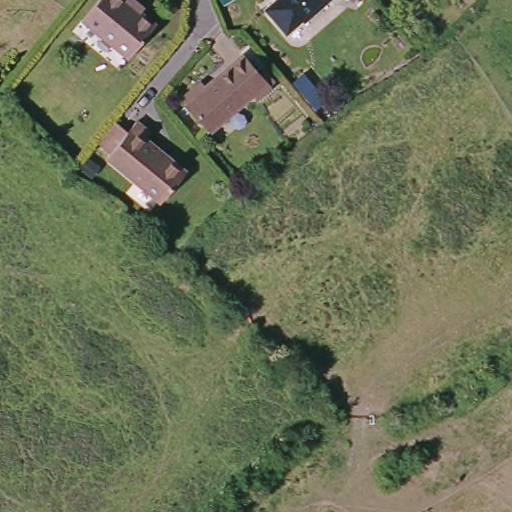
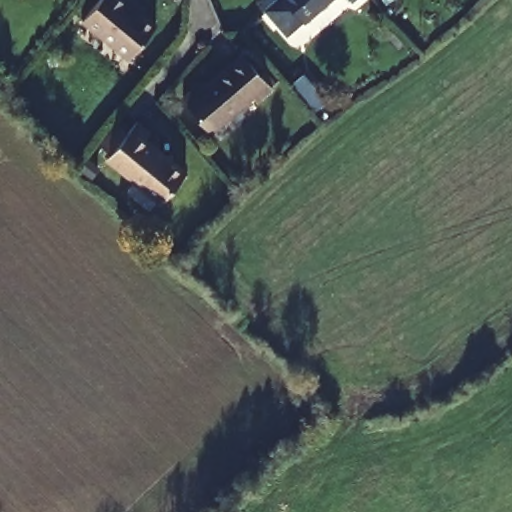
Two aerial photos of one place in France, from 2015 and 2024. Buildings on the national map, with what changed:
unchanged [(128,0),(157,24),(129,57),(82,19),(98,0),(128,0)]
unchanged [(293,24),(278,36),(257,11),(270,0),(323,0),(295,25),(293,24)]
unchanged [(183,98),(202,82),(205,86),(243,55),(270,86),(257,97),(252,93),(211,129),(183,98)]
unchanged [(151,130),(147,136),(160,146),(157,149),(169,158),(170,156),(188,170),(164,200),(110,155),(112,151),(102,143),(118,122),(130,131),(138,120),(151,130)]

